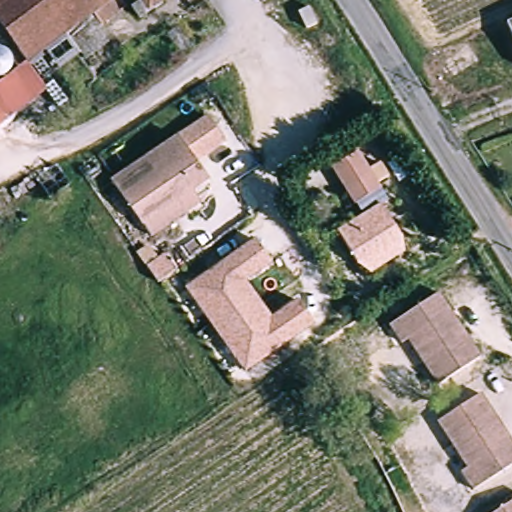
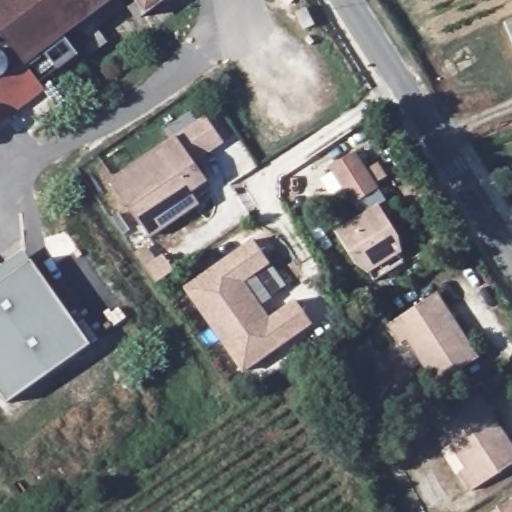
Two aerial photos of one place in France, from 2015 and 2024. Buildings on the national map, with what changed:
unchanged [(106,32),(86,49),(70,26),(65,30),(28,56),(0,19),(0,0),(124,0),(99,21),(106,32)]
unchanged [(134,4),(139,0),(162,0),(143,15),(134,4)]
unchanged [(508,19),(512,17),(512,28),(508,19)]
unchanged [(42,76),(41,80),(48,90),(0,126),(0,19),(28,56),(42,76)]
unchanged [(80,50),(42,76),(28,56),(65,30),(80,50)]
unchanged [(146,229),(115,184),(209,119),(226,144),(197,165),(211,184),(196,195),(204,206),(155,240),(146,229)]
unchanged [(381,184),(359,199),(333,160),(356,145),(381,184)]
unchanged [(381,272),(361,263),(341,233),(381,206),(401,235),(405,255),(381,272)]
unchanged [(293,300),(311,321),(246,372),(182,291),(248,241),(266,262),(239,285),(268,320),(293,300)]
new [(31,261),(90,346),(8,404),(0,393),(0,284),(1,283),(0,282),(0,267),(23,250),(31,261)]
unchanged [(148,272),(164,260),(176,274),(158,287),(148,272)]
unchanged [(393,325),(441,294),(479,353),(436,382),(406,337),(403,340),(393,325)]
unchanged [(439,423),(480,396),(512,445),(512,466),(478,489),(462,469),(467,465),(439,423)]
unchanged [(512,503),(512,512),(500,512),(512,503)]

